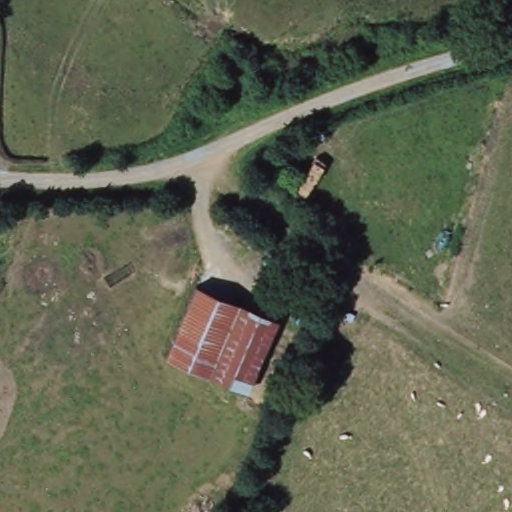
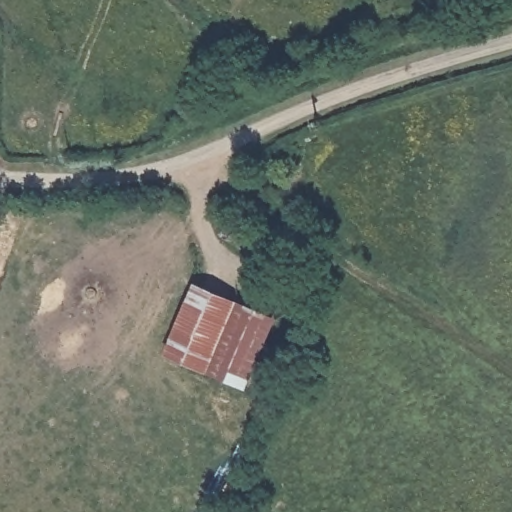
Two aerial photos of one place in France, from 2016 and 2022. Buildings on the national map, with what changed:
unchanged [(190,280),(273,315),(244,384),(161,348),(190,280)]

